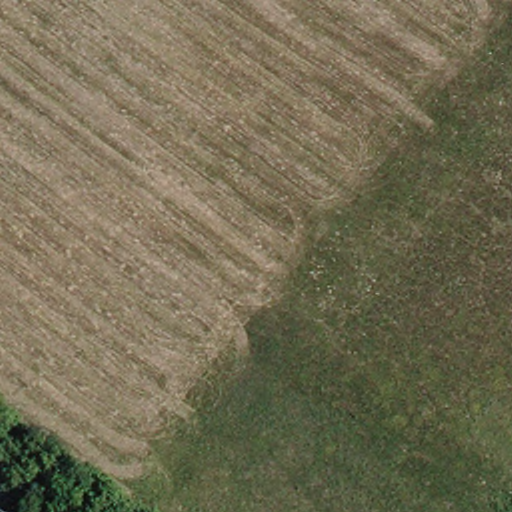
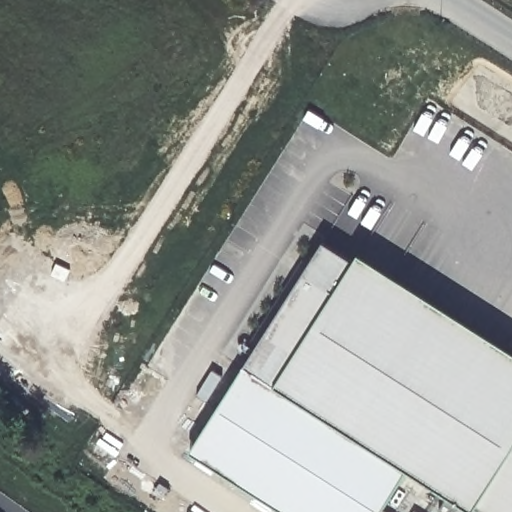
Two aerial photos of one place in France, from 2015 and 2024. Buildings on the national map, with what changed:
new [(475,512),(473,510),(471,512),(388,512),(382,508),(407,470),(273,385),(243,367),(323,241),(353,260),(512,362),(512,512),(475,512)]
new [(358,253),(512,351),(512,362),(353,260),(358,253)]
new [(287,512),(190,451),(243,367),(273,385),(407,470),(382,508),(379,512),(287,512)]
new [(475,512),(471,512),(473,510),(475,512)]

